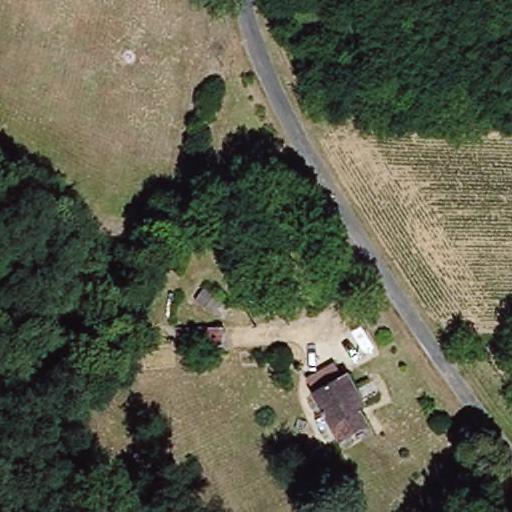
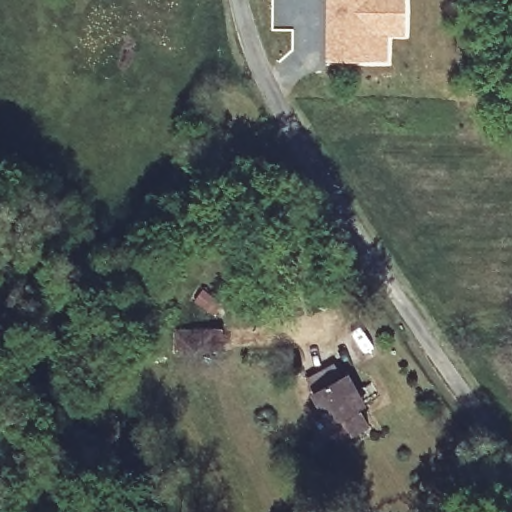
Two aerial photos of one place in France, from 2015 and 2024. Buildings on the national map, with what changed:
new [(406,0),(406,34),(387,34),(387,61),(369,61),(329,61),(329,0),(406,0)]
unchanged [(374,413),(368,417),(376,430),(346,447),(320,402),(322,400),(314,386),(338,371),(347,385),(354,380),(374,413)]

